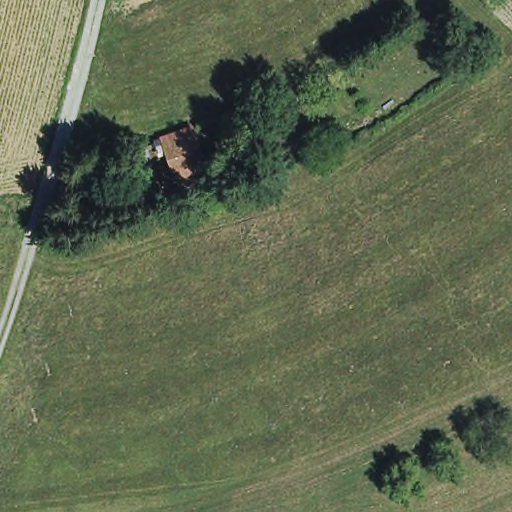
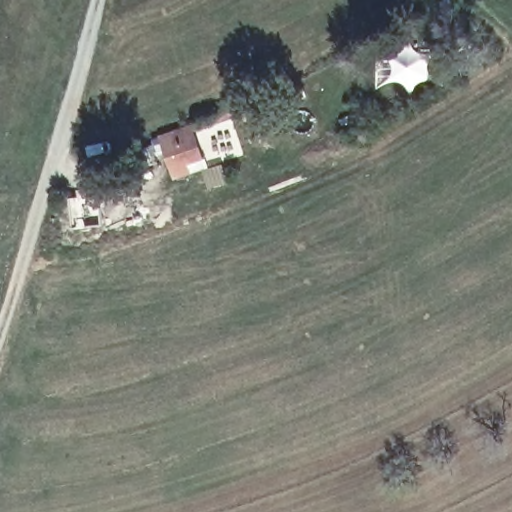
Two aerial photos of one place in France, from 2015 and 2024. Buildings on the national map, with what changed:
unchanged [(185,127),(196,155),(165,165),(154,137),(159,135),(156,126),(174,119),(179,129),(185,127)]

